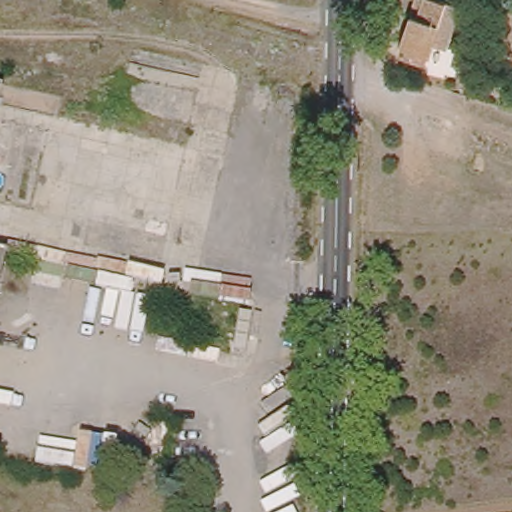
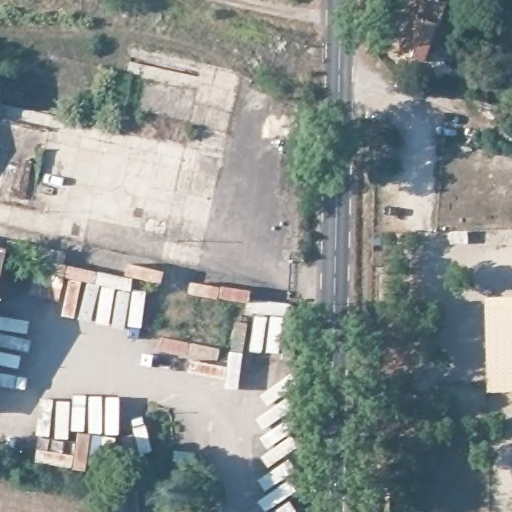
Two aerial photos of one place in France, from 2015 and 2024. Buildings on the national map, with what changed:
unchanged [(440,0),(455,6),(447,25),(434,69),(391,56),(405,12),(417,16),(421,0),(440,0)]
unchanged [(4,247),(0,264),(0,247),(4,247)]
new [(512,392),(486,392),(483,297),(512,296),(512,392)]

